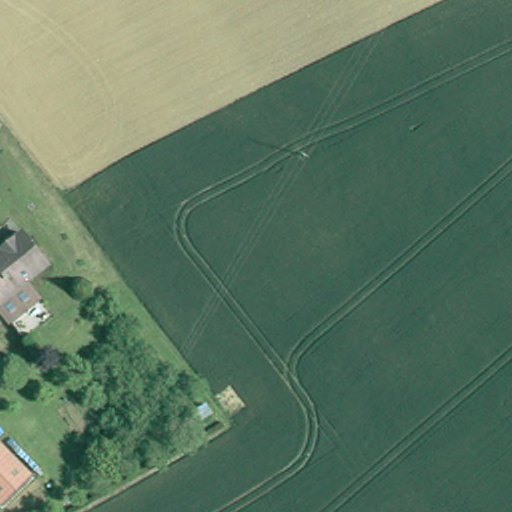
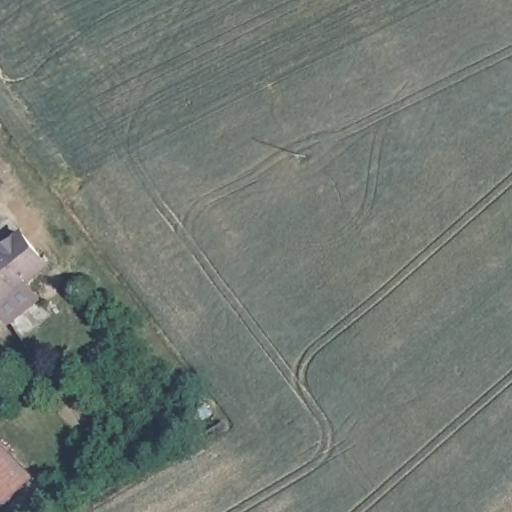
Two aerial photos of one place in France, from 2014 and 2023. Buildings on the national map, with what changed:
unchanged [(28,278),(41,293),(14,317),(0,300),(0,240),(3,237),(7,242),(26,226),(53,258),(28,278)]
unchanged [(0,510),(0,442),(34,475),(0,510)]

